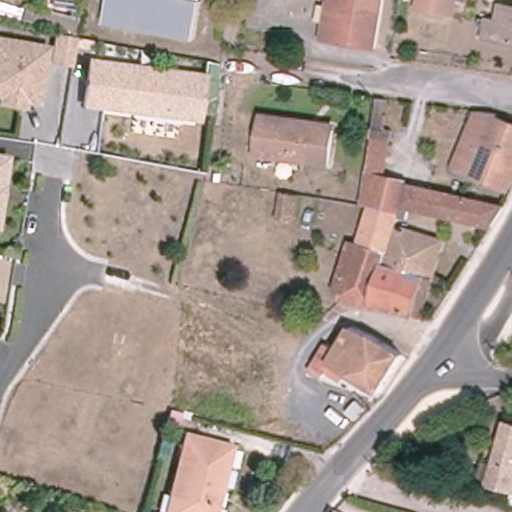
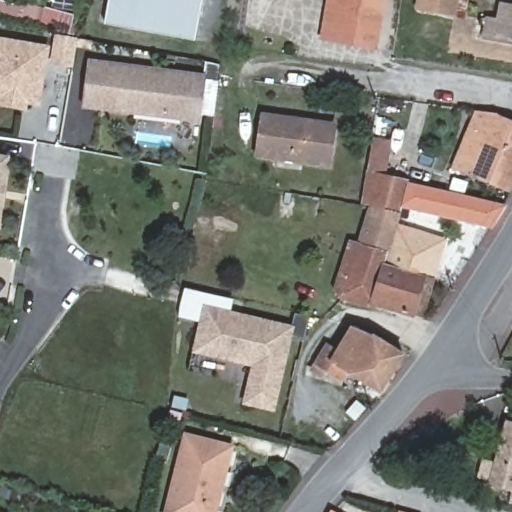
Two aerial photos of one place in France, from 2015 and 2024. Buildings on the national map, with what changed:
unchanged [(189,37),(107,22),(111,0),(179,0),(195,3),(189,37)]
unchanged [(323,38),(330,0),(386,0),(377,47),(323,38)]
unchanged [(458,0),(456,15),(418,7),(420,0),(458,0)]
unchanged [(45,63),(37,106),(26,104),(25,110),(0,106),(0,37),(52,46),(54,35),(0,23),(0,4),(78,18),(70,66),(45,63)]
unchanged [(502,4),(512,6),(512,42),(485,37),(488,19),(499,21),(502,4)]
unchanged [(198,122),(80,109),(85,58),(204,74),(198,122)]
unchanged [(497,118),(512,124),(512,181),(509,187),(456,166),(479,111),(499,114),(497,118)]
unchanged [(336,125),(330,166),(258,156),(263,114),(336,125)]
unchanged [(393,140),(387,174),(368,170),(373,137),(393,140)]
unchanged [(0,214),(0,154),(7,155),(0,214)]
unchanged [(409,184),(403,206),(401,212),(385,209),(384,209),(362,204),(367,172),(409,182),(409,184)]
unchanged [(403,206),(409,184),(506,206),(493,227),(403,206)]
unchanged [(414,316),(344,296),(336,290),(351,242),(360,244),(371,207),(400,216),(397,226),(385,264),(426,277),(414,316)]
unchanged [(446,240),(435,280),(426,277),(385,264),(397,226),(446,240)]
new [(243,403),(252,366),(193,352),(203,302),(296,324),(275,411),(243,403)]
demolished [(263,321),(251,370),(228,365),(239,316),(263,321)]
unchanged [(337,350),(352,326),(373,335),(404,355),(381,391),(333,361),(328,370),(317,363),(328,345),(337,350)]
unchanged [(493,482),(510,423),(512,424),(512,488),(493,482)]
unchanged [(213,512),(164,512),(183,436),(229,448),(220,482),(218,492),(214,507),(213,512)]
unchanged [(333,508),(341,512),(331,512),(333,508)]

